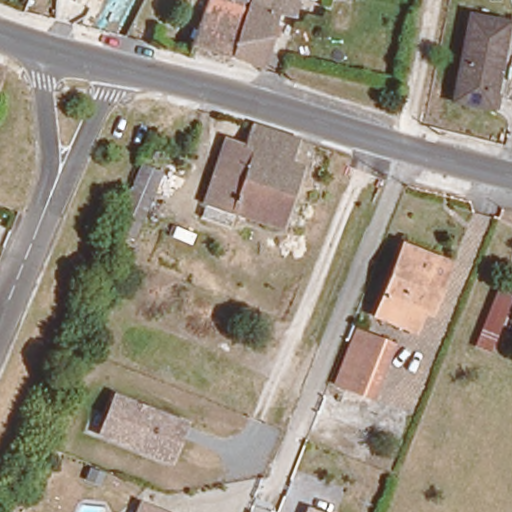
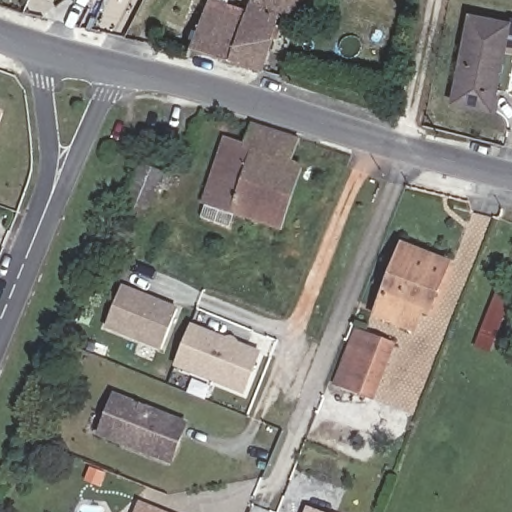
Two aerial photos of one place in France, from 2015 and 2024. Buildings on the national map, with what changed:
unchanged [(191,46),(209,0),(230,0),(247,5),(249,0),(299,0),(297,11),(280,9),(272,39),(264,65),(234,56),(191,46)]
unchanged [(484,99),(447,90),(465,6),(504,15),(484,99)]
new [(0,125),(0,110),(5,112),(0,125)]
unchanged [(269,128),(299,137),(292,158),(243,143),(249,122),(269,128)]
unchanged [(292,158),(301,160),(281,225),(233,210),(229,221),(201,213),(206,201),(204,200),(225,137),(243,143),(292,158)]
unchanged [(134,242),(115,234),(141,169),(162,177),(134,242)]
unchanged [(427,313),(419,310),(411,328),(374,313),(401,245),(446,262),(427,313)]
new [(106,328),(121,285),(177,306),(161,350),(106,328)]
unchanged [(477,335),(495,290),(510,296),(492,341),(477,335)]
unchanged [(367,388),(340,377),(330,374),(350,322),(361,326),(387,336),(367,388)]
new [(192,328),(260,356),(244,395),(176,367),(192,328)]
unchanged [(190,424),(170,466),(93,434),(111,392),(190,424)]
unchanged [(135,512),(138,502),(163,512),(135,512)]
unchanged [(313,512),(306,512),(306,510),(313,512)]

